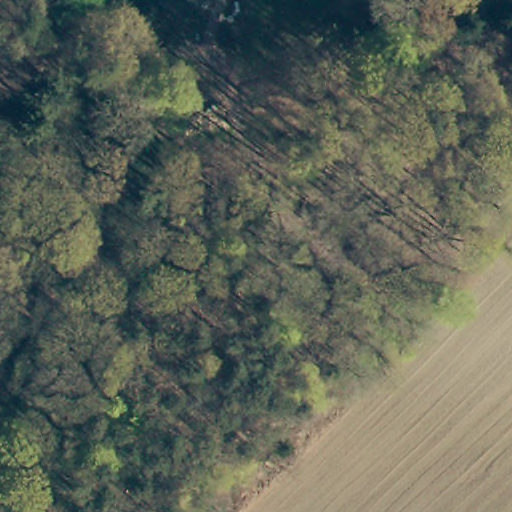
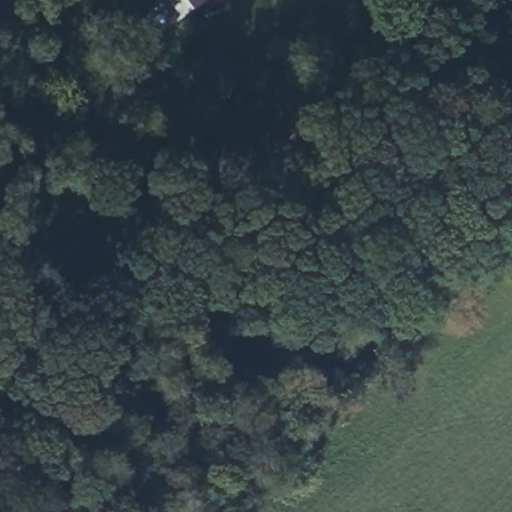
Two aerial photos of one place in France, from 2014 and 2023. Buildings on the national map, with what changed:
unchanged [(191,11),(189,9),(177,21),(156,1),(158,0),(203,0),(191,11)]

